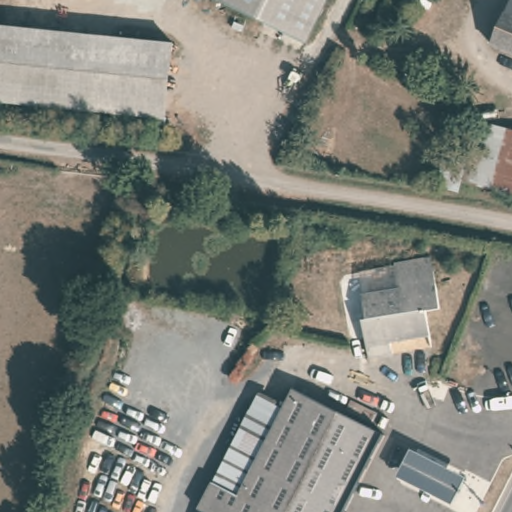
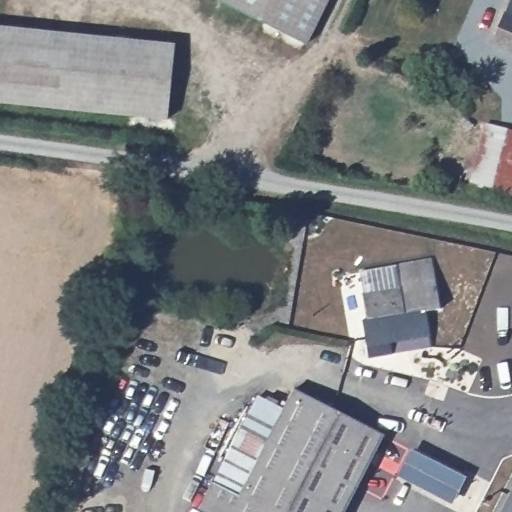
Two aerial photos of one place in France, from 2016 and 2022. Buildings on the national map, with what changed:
unchanged [(315,59),(220,17),(227,0),(340,0),(315,59)]
unchanged [(512,20),(512,62),(496,56),(512,20)]
unchanged [(178,46),(168,120),(0,97),(0,21),(178,46)]
unchanged [(469,189),(485,130),(507,137),(491,196),(469,189)]
unchanged [(507,137),(512,138),(512,202),(491,196),(507,137)]
unchanged [(396,275),(396,271),(432,266),(437,296),(424,298),(425,322),(390,328),(391,342),(366,346),(362,308),(348,310),(345,284),(396,275)]
unchanged [(285,415),(294,396),(383,444),(348,512),(200,512),(259,402),(285,415)]
unchanged [(411,452),(464,477),(452,502),(398,476),(411,452)]

